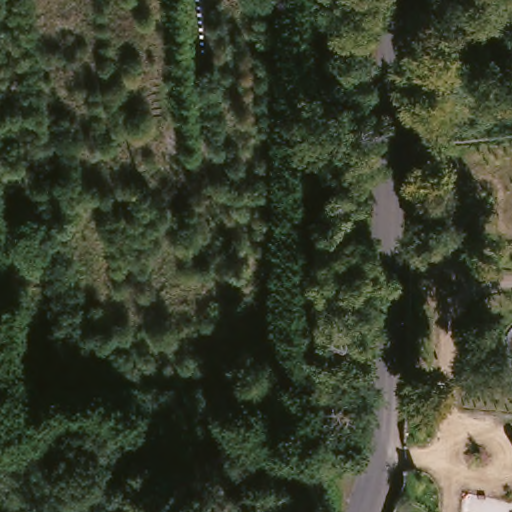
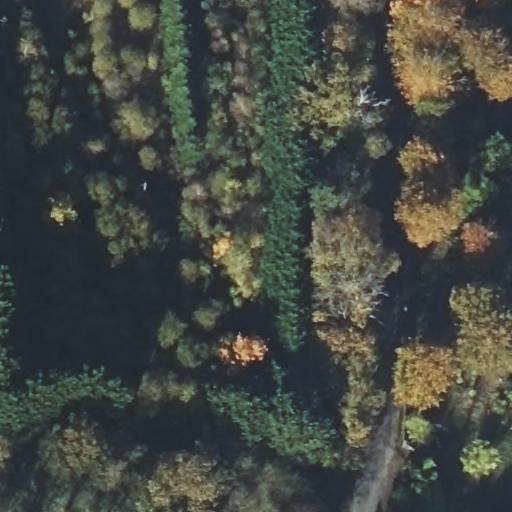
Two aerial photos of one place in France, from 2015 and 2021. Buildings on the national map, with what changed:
unchanged [(124,219),(121,197),(136,195),(138,218),(124,219)]

